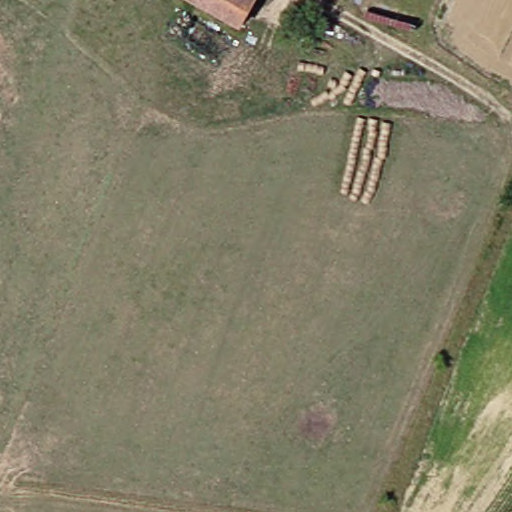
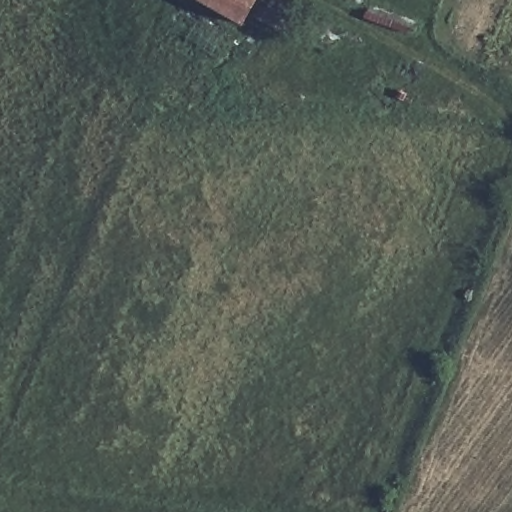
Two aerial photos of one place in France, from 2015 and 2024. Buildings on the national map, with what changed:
unchanged [(207,0),(266,0),(251,25),(207,0)]

